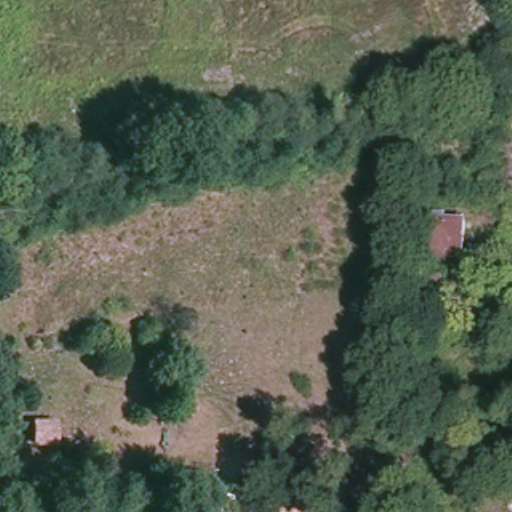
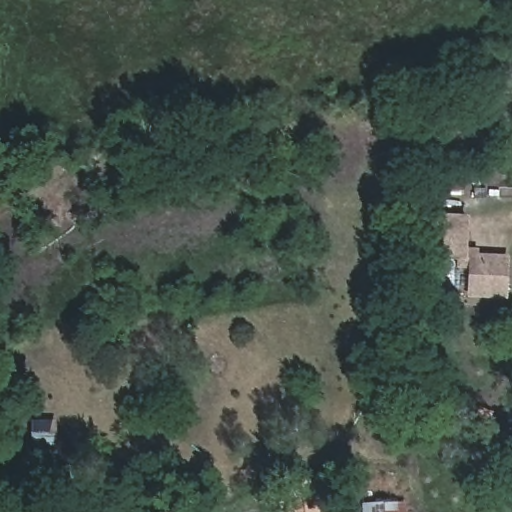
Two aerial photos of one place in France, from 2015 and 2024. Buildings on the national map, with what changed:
unchanged [(434,218),(463,217),(463,253),(434,254),(434,218)]
new [(507,298),(468,297),(469,254),(508,255),(507,298)]
unchanged [(59,448),(33,447),(33,421),(59,421),(59,448)]
new [(362,512),(362,505),(404,502),(404,512),(362,512)]

